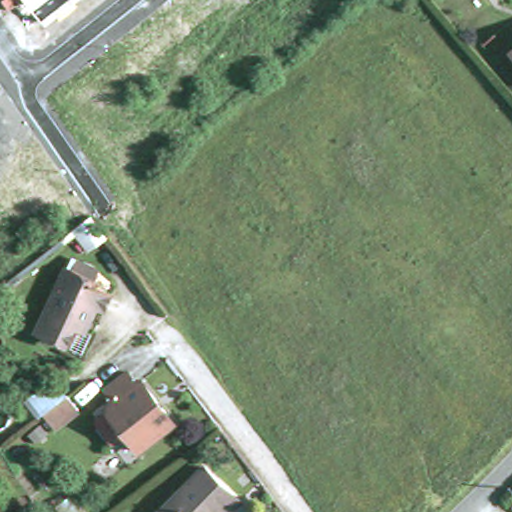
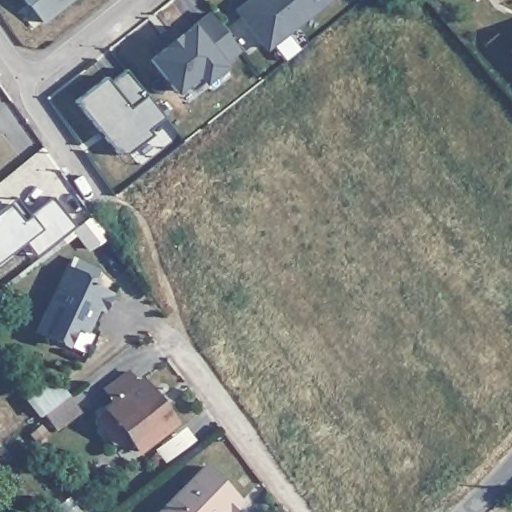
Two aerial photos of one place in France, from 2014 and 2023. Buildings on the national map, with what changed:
unchanged [(41,21),(26,0),(69,0),(41,21)]
new [(265,51),(233,9),(244,0),(332,0),(265,51)]
new [(238,52),(223,64),(226,68),(202,85),(197,78),(175,95),(146,58),(162,46),(155,39),(172,26),(179,32),(191,24),(208,11),(238,52)]
unchanged [(512,52),(512,57),(510,54),(512,52)]
new [(77,101),(108,75),(112,80),(127,67),(166,116),(151,129),(155,134),(132,152),(121,154),(106,136),(102,131),(77,101)]
unchanged [(91,247),(76,227),(94,213),(109,234),(91,247)]
unchanged [(104,295),(95,312),(85,307),(75,329),(68,326),(58,345),(29,330),(59,268),(65,271),(70,260),(95,272),(90,282),(87,287),(104,295)]
unchanged [(111,411),(120,405),(110,392),(134,376),(142,387),(147,385),(170,417),(135,443),(111,411)]
unchanged [(38,421),(62,402),(73,417),(49,435),(38,421)]
unchanged [(160,512),(205,468),(240,502),(231,512),(227,512),(220,506),(213,512),(160,512)]

